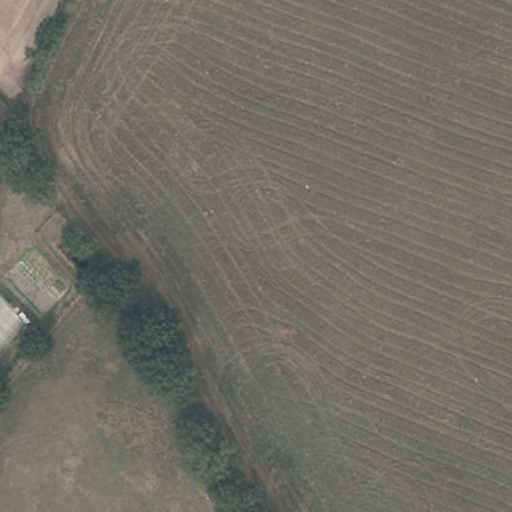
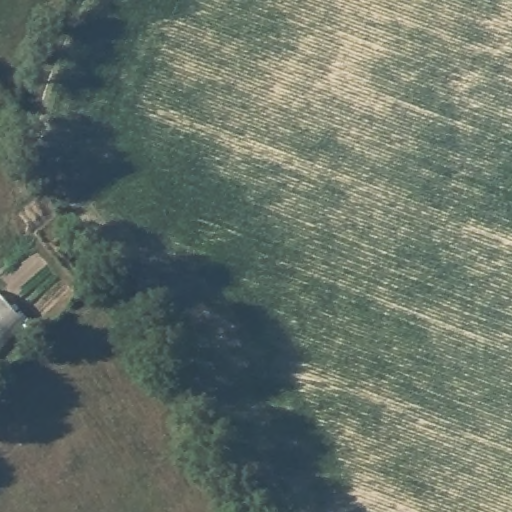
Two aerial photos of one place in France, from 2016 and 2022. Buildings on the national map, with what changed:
[]

